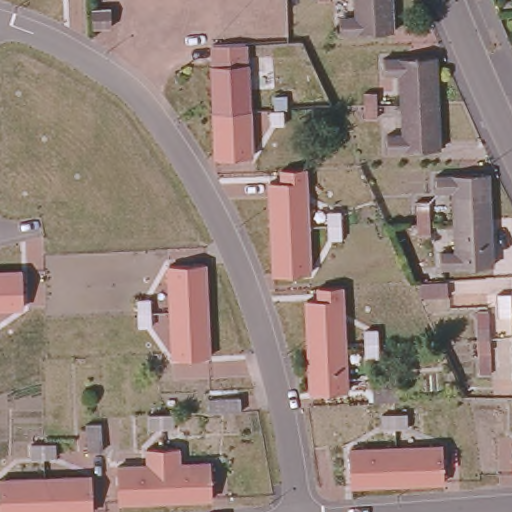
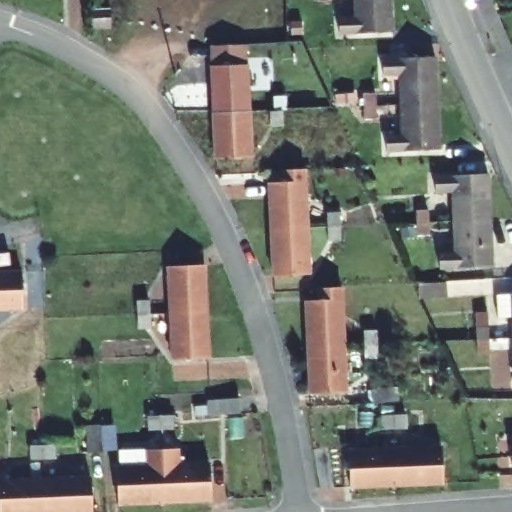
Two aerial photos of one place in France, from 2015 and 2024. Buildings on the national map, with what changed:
unchanged [(318,0),(331,0),(318,1),(318,0)]
unchanged [(392,25),(357,27),(340,27),(339,11),(356,10),(355,0),(391,0),(392,25)]
unchanged [(90,25),(90,6),(97,6),(106,6),(107,24),(90,25)]
unchanged [(401,104),(400,74),(383,75),(382,59),(398,58),(435,56),(437,103),(401,104)]
unchanged [(237,115),(213,116),(211,69),(267,67),(267,76),(250,76),(251,114),(237,115)]
unchanged [(275,89),(286,89),(287,107),(287,121),(276,122),(275,108),(275,89)]
unchanged [(365,119),(364,106),(363,93),(375,93),(376,105),(377,119),(365,119)]
unchanged [(387,150),(387,134),(404,134),(401,104),(437,103),(440,149),(405,150),(387,150)]
unchanged [(237,115),(251,114),(252,161),(216,162),(213,116),(237,115)]
unchanged [(455,222),(453,190),(435,191),(435,174),(452,174),(487,173),(490,220),(455,222)]
unchanged [(271,228),(270,182),(306,181),(308,226),(271,228)]
unchanged [(418,235),(417,224),(416,210),(429,210),(430,223),(430,234),(418,235)]
unchanged [(332,213),(345,213),(345,225),(345,238),(333,238),(332,225),(332,213)]
unchanged [(494,265),(457,267),(441,268),(440,251),(456,250),(455,222),(490,220),(494,265)]
unchanged [(310,273),(274,275),(271,228),(308,226),(310,273)]
unchanged [(170,312),(168,264),(205,263),(207,310),(170,312)]
unchanged [(20,271),(22,307),(0,308),(0,272),(20,271)]
unchanged [(419,282),(446,281),(447,296),(420,297),(419,282)]
unchanged [(495,296),(511,294),(510,293),(512,293),(512,318),(497,318),(495,296)]
unchanged [(134,327),(133,313),(132,300),(144,299),(145,313),(145,326),(134,327)]
unchanged [(308,346),(306,300),(342,299),(344,344),(308,346)]
unchanged [(170,312),(207,310),(209,357),(172,358),(170,312)]
unchanged [(477,327),(488,327),(490,339),(490,352),(478,352),(478,340),(477,327)]
unchanged [(370,333),(381,332),(381,342),(381,357),(371,357),(370,343),(370,333)]
unchanged [(310,392),(308,346),(344,344),(346,390),(310,392)]
unchanged [(381,413),(394,413),(407,412),(407,422),(395,423),(382,423),(381,413)]
unchanged [(148,430),(161,429),(173,428),(174,440),(162,441),(149,442),(148,430)]
unchanged [(33,442),(45,442),(57,441),(58,452),(45,452),(34,453),(33,442)]
unchanged [(442,445),(443,480),(397,482),(395,447),(442,445)]
unchanged [(397,482),(352,485),(350,449),(395,447),(397,482)]
unchanged [(163,465),(210,463),(211,499),(165,501),(163,465)]
unchanged [(120,504),(118,467),(163,465),(165,501),(120,504)]
unchanged [(91,475),(93,510),(71,512),(48,512),(46,477),(91,475)]
unchanged [(46,477),(48,512),(1,512),(0,480),(46,477)]

